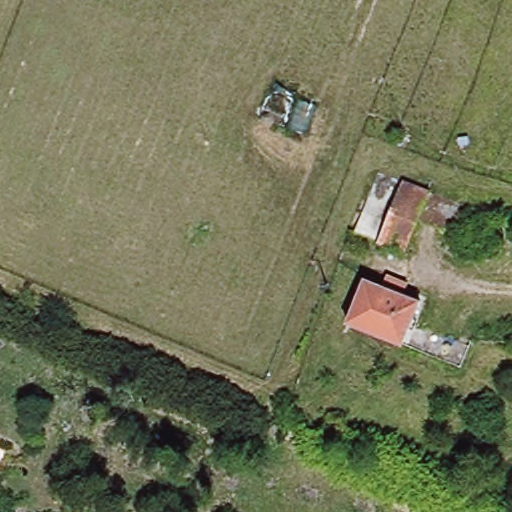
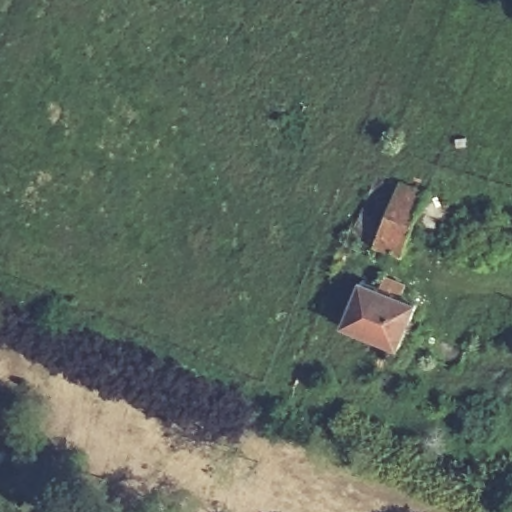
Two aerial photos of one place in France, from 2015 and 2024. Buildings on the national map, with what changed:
unchanged [(376,242),(400,181),(426,191),(448,199),(440,221),(418,213),(403,252),(376,242)]
unchanged [(417,295),(406,321),(473,347),(465,367),(453,361),(344,318),(361,273),(417,295)]

